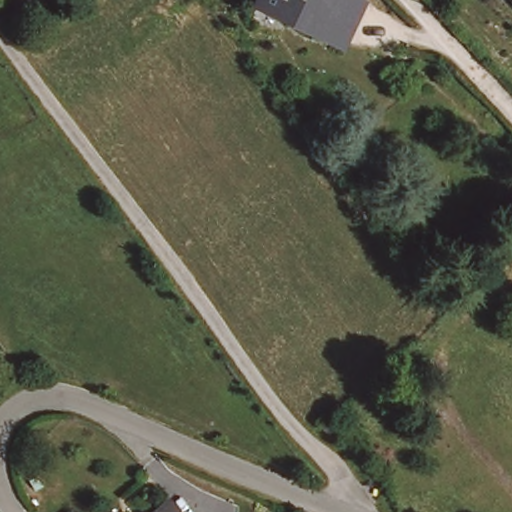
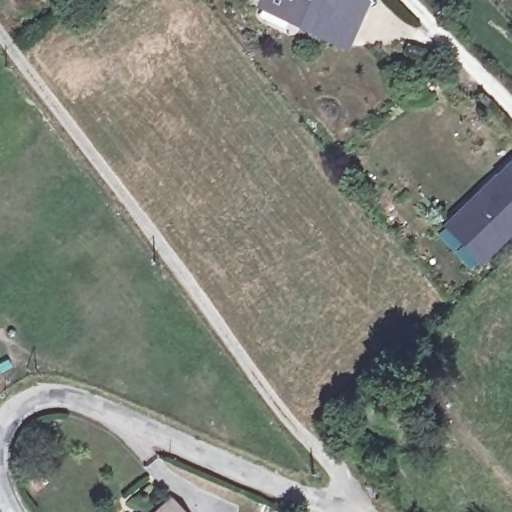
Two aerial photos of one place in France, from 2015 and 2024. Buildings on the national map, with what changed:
unchanged [(262,0),(363,0),(343,44),(260,6),(262,0)]
new [(512,166),(512,234),(483,261),(449,225),(512,166)]
unchanged [(171,512),(149,512),(161,500),(171,512)]

